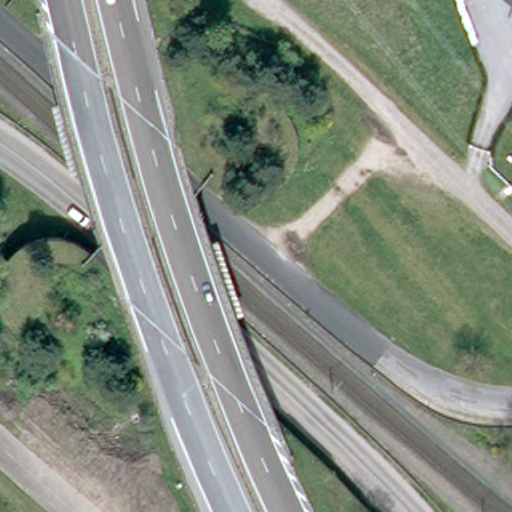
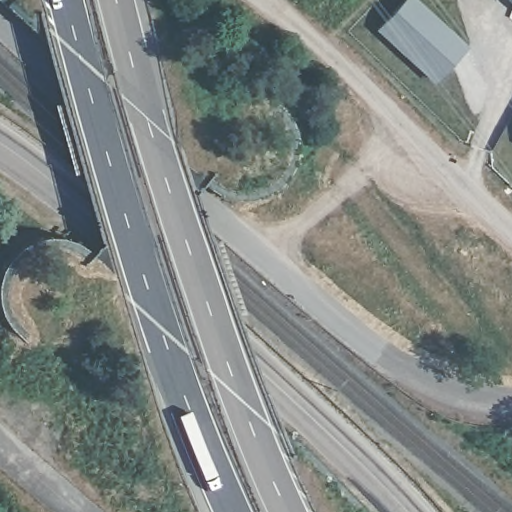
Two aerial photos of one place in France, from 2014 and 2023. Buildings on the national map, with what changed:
new [(405,0),(410,0),(462,47),(433,80),(378,30),(405,0)]
unchanged [(512,3),(509,0),(512,0),(512,3)]

